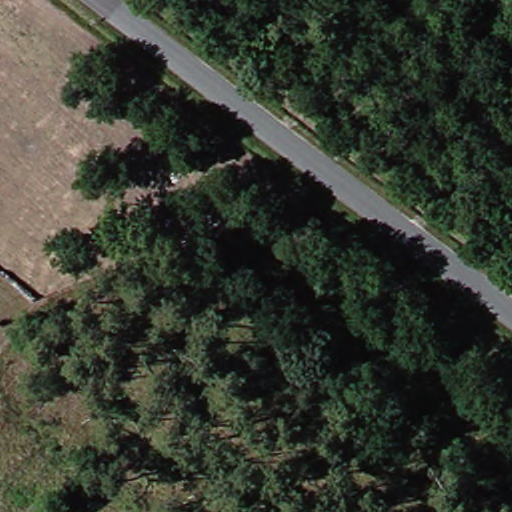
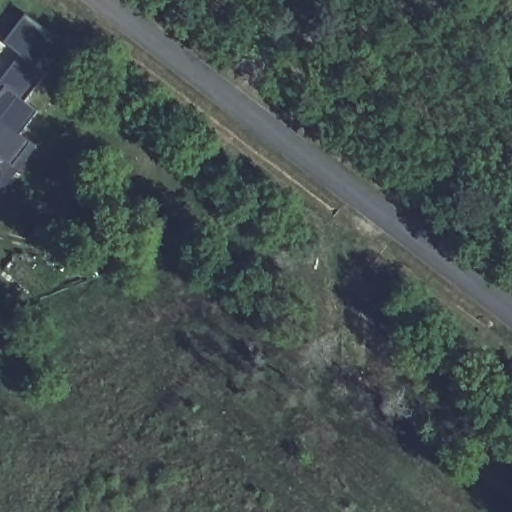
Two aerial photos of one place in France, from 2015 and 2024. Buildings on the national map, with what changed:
new [(21,56),(5,43),(26,16),(57,37),(36,66),(46,75),(25,102),(38,112),(20,135),(36,147),(0,194),(0,82),(21,56)]

